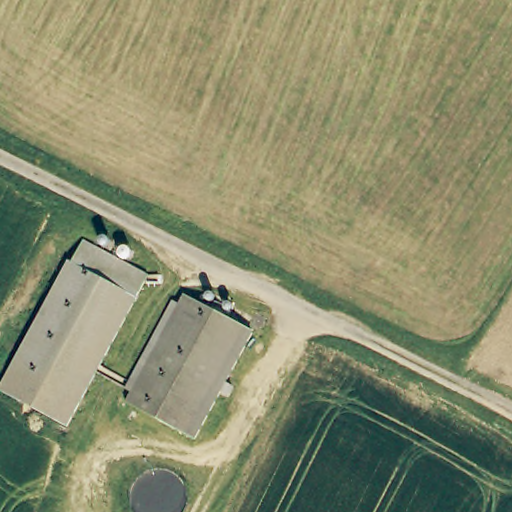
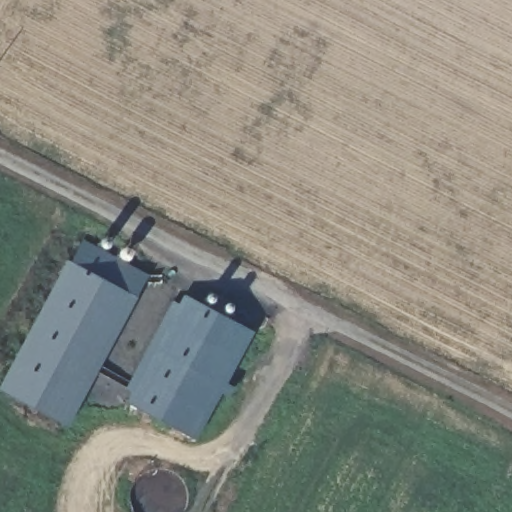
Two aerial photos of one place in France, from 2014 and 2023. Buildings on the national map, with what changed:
unchanged [(0,391),(81,239),(151,272),(68,430),(0,394),(0,391)]
unchanged [(195,436),(131,404),(188,297),(250,331),(195,436)]

